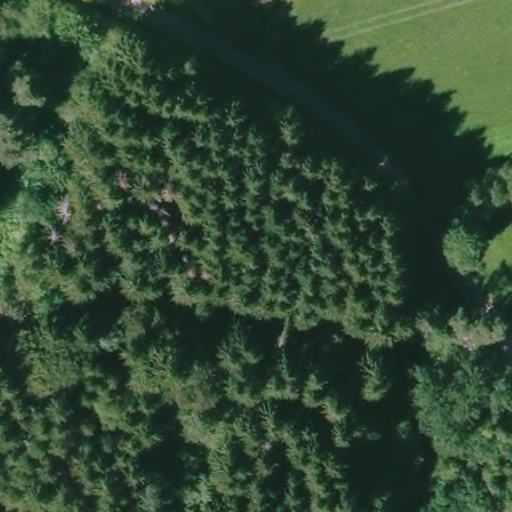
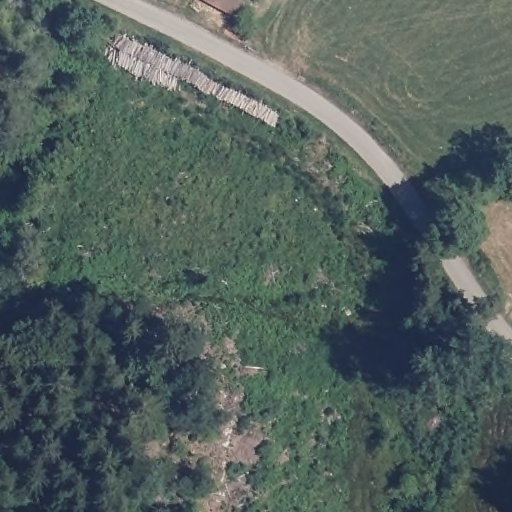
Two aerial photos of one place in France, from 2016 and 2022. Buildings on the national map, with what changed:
unchanged [(244,29),(206,9),(210,0),(216,0),(248,18),(244,29)]

